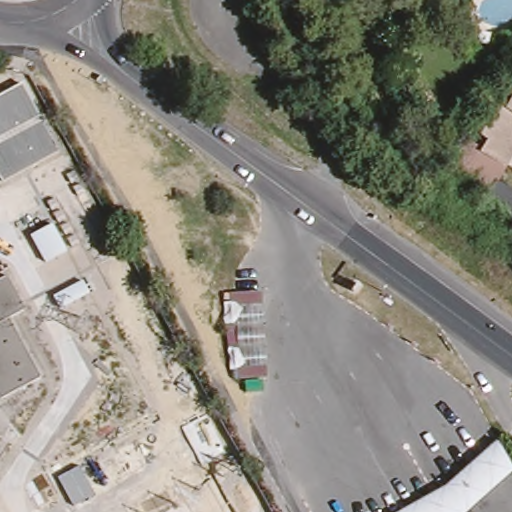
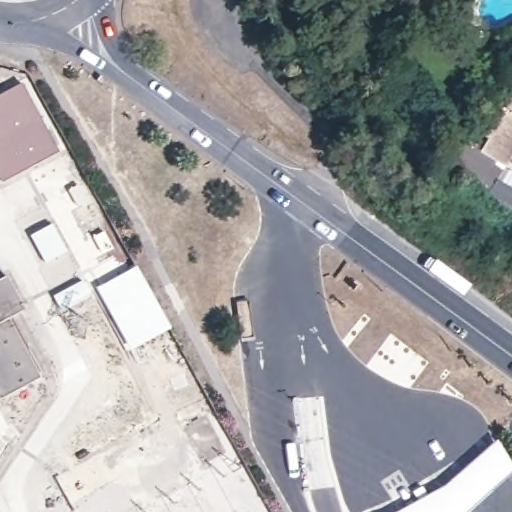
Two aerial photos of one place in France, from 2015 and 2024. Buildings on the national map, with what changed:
unchanged [(44,117),(42,117),(60,152),(3,182),(0,176),(0,95),(23,82),(41,117),(43,116),(44,117)]
unchanged [(484,150),(489,140),(484,137),(494,117),(499,120),(505,107),(500,105),(512,90),(512,158),(509,165),(484,150)]
unchanged [(434,108),(423,120),(412,110),(422,97),(434,108)]
unchanged [(72,188),(67,180),(75,176),(80,184),(72,188)]
unchanged [(497,182),(512,191),(512,215),(489,201),(497,182)]
unchanged [(79,201),(74,192),(82,188),(86,197),(79,201)]
unchanged [(60,211),(53,216),(48,207),(56,203),(60,211)]
unchanged [(62,215),(67,224),(59,227),(55,219),(62,215)]
unchanged [(69,227),(74,236),(66,240),(61,231),(69,227)]
unchanged [(68,256),(46,267),(32,240),(53,229),(53,228),(68,256)]
unchanged [(76,240),(80,248),(73,252),(68,244),(76,240)]
new [(130,351),(97,290),(138,266),(172,330),(130,351)]
unchanged [(18,278),(34,312),(18,320),(48,382),(5,402),(0,392),(0,287),(18,278)]
unchanged [(84,285),(90,297),(61,312),(55,301),(84,285)]
unchanged [(236,371),(229,372),(225,294),(262,290),(268,378),(237,380),(236,371)]
unchanged [(414,502),(444,485),(480,452),(494,441),(512,465),(512,476),(475,512),(395,512),(414,502)]

